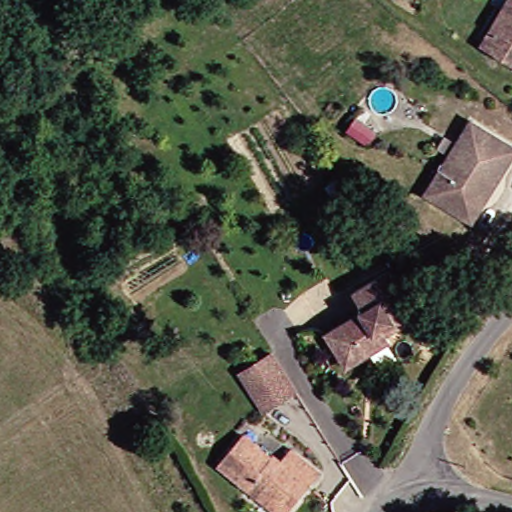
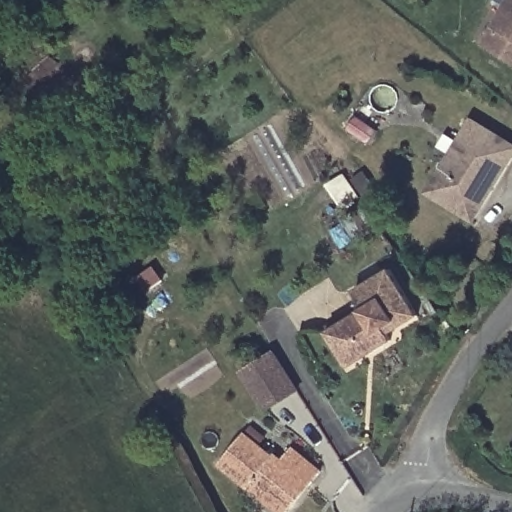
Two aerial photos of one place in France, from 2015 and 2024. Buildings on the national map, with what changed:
unchanged [(503,0),(512,0),(512,65),(477,44),(503,0)]
unchanged [(450,214),(417,193),(462,120),(508,148),(471,209),(463,222),(450,214)]
unchanged [(337,362),(320,333),(358,309),(348,291),(384,270),(412,317),(392,328),(382,335),(385,341),(363,355),(341,368),(337,362)]
unchanged [(287,391),(256,410),(233,373),(265,354),(287,391)]
unchanged [(242,485),(214,461),(239,430),(267,453),(268,451),(276,457),(286,445),(315,468),(304,482),(279,512),(276,512),(242,485)]

